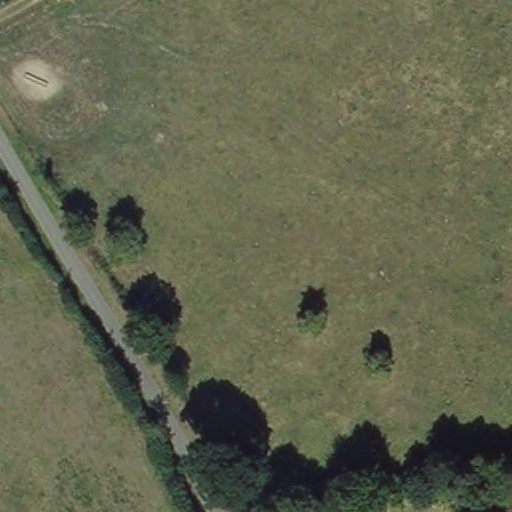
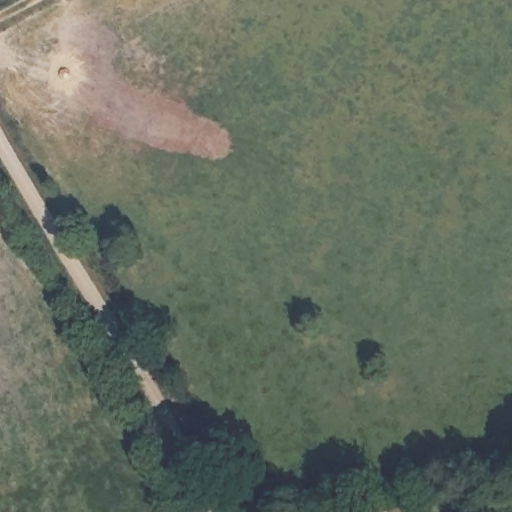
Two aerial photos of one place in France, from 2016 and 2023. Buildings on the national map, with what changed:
[]

